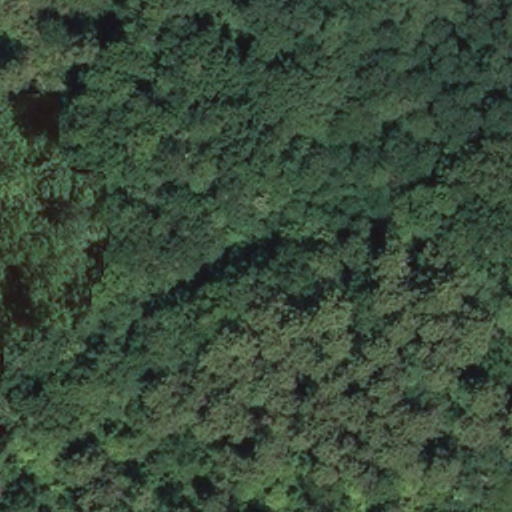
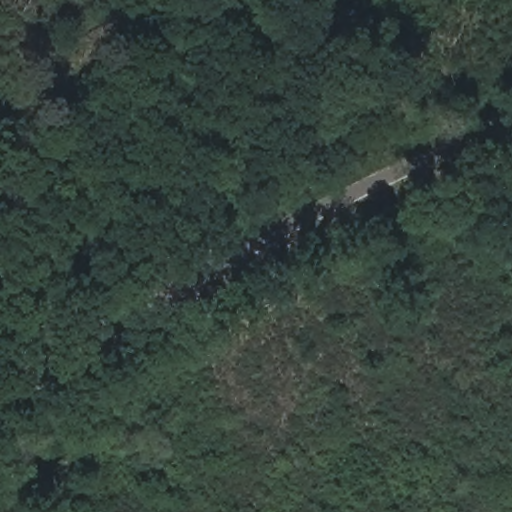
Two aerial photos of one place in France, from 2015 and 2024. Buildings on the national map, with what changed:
[]

